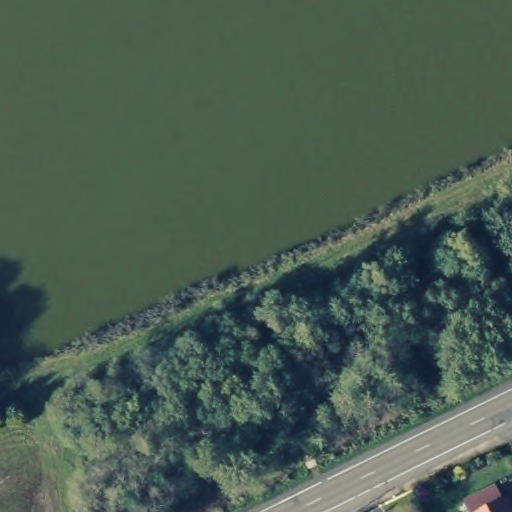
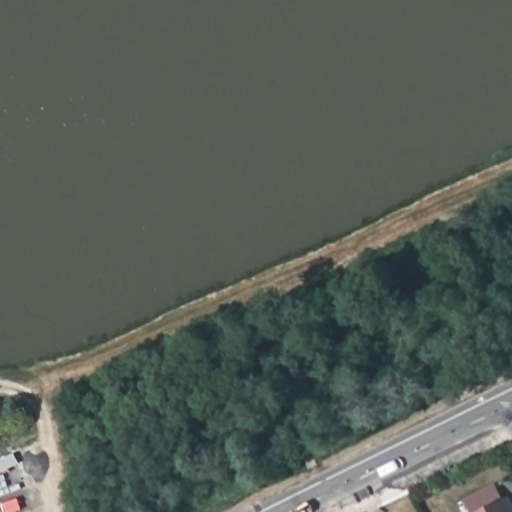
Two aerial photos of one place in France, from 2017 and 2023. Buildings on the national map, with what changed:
unchanged [(495,485),(501,498),(506,496),(512,506),(512,512),(467,512),(461,502),(495,485)]

